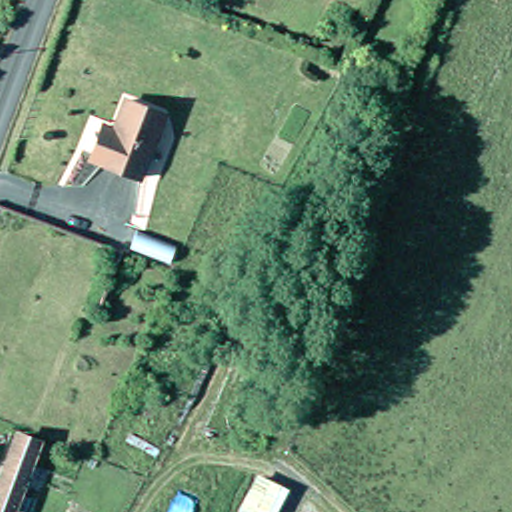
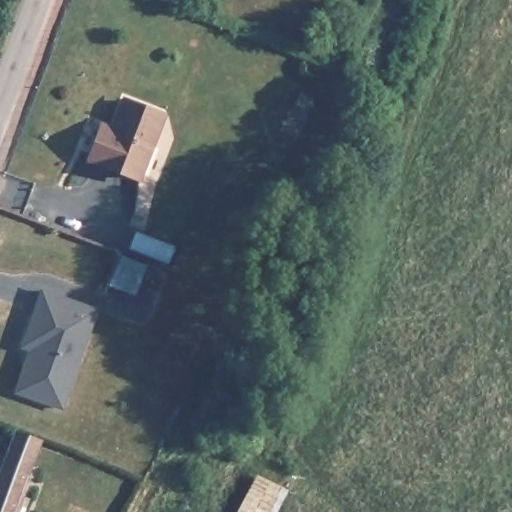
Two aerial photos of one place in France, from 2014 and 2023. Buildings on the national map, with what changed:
unchanged [(164,112),(139,174),(91,155),(100,133),(104,123),(116,128),(128,98),(164,112)]
new [(148,264),(135,295),(108,283),(120,253),(148,264)]
new [(20,347),(41,287),(101,307),(64,409),(15,392),(28,349),(20,347)]
unchanged [(15,435),(33,443),(7,511),(0,508),(0,472),(7,455),(15,435)]
new [(289,488),(276,512),(236,512),(257,473),(289,488)]

